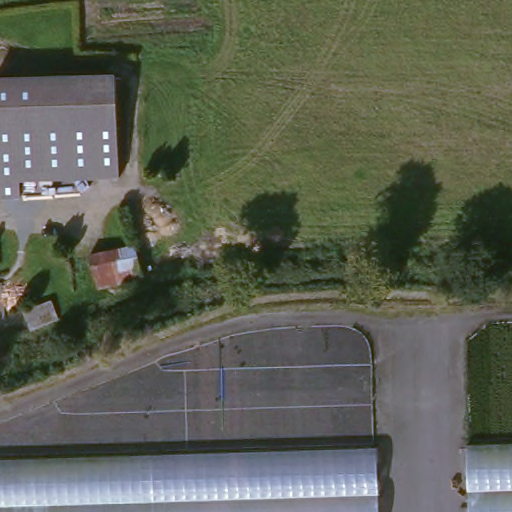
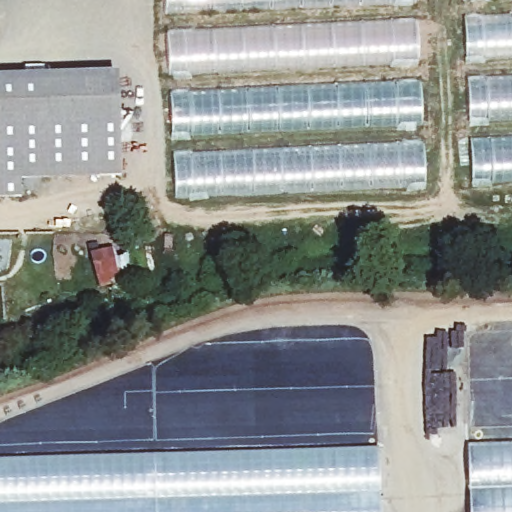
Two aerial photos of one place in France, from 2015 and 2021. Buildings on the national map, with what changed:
new [(175,198),(165,0),(416,0),(425,183),(175,198)]
new [(463,0),(512,0),(512,182),(471,184),(463,0)]
unchanged [(97,170),(27,175),(27,198),(0,198),(0,79),(119,77),(125,180),(97,181),(97,170)]
unchanged [(0,280),(0,241),(11,241),(10,280),(0,280)]
unchanged [(147,244),(149,281),(102,287),(99,250),(147,244)]
unchanged [(19,317),(64,305),(71,327),(25,343),(19,317)]
unchanged [(512,512),(475,512),(472,443),(512,442),(512,512)]
unchanged [(382,446),(384,512),(0,512),(0,456),(382,446)]

